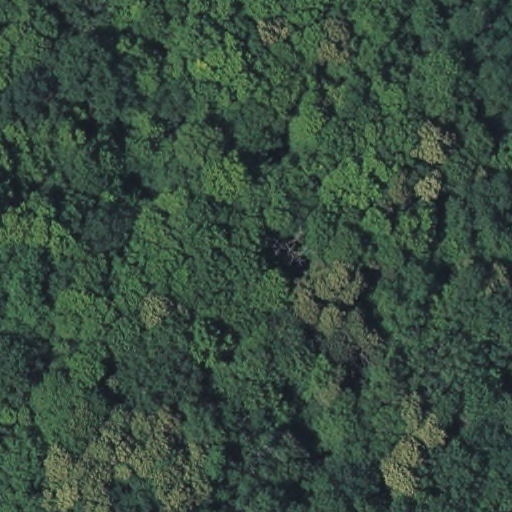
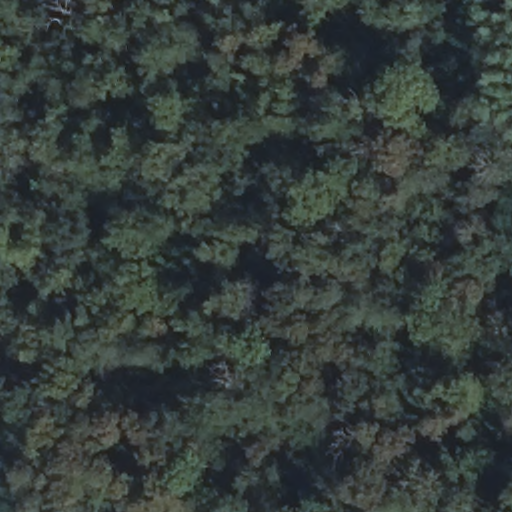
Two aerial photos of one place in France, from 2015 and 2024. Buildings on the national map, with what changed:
[]

